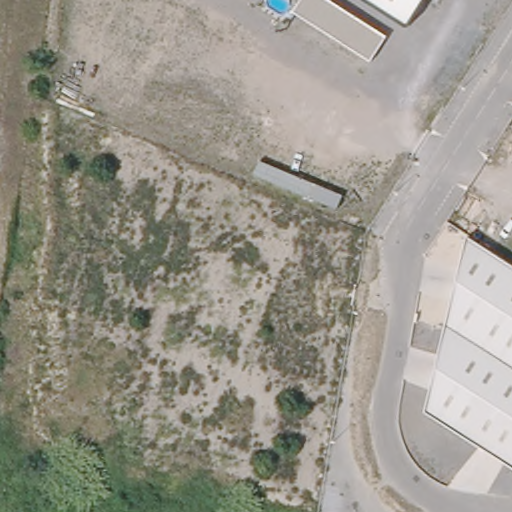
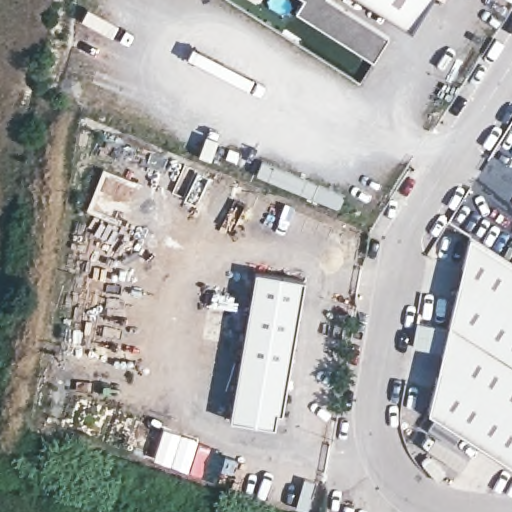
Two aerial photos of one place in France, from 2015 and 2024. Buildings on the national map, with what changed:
unchanged [(371,62),(294,13),(302,0),(330,0),(387,38),(371,62)]
unchanged [(367,0),(425,0),(408,26),(367,0)]
unchanged [(259,161),(343,196),(338,209),(254,175),(259,161)]
unchanged [(512,462),(427,410),(468,235),(512,263),(512,462)]
new [(304,279),(282,413),(276,411),(275,426),(230,418),(255,271),(304,279)]

